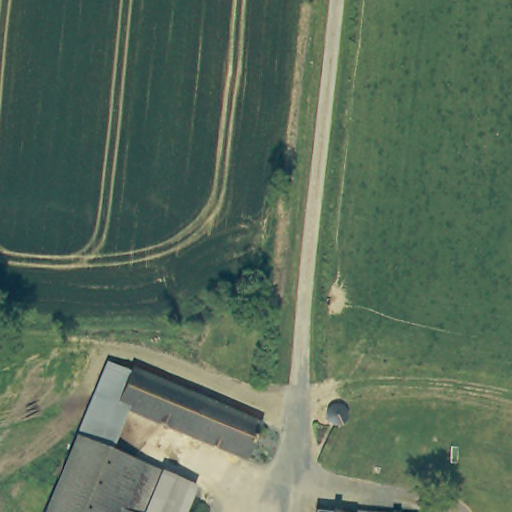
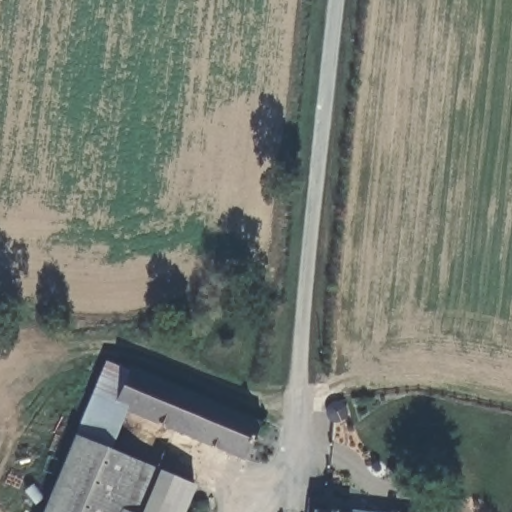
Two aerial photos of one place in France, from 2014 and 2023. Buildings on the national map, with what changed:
unchanged [(99,380),(107,360),(126,367),(130,364),(262,420),(248,458),(127,406),(111,447),(87,438),(77,434),(94,392),(99,380)]
unchanged [(322,409),(334,405),(340,409),(341,418),(336,424),(325,424),(322,409)]
unchanged [(77,434),(87,438),(111,447),(164,469),(146,512),(44,512),(77,434)]
unchanged [(195,481),(182,512),(146,512),(164,469),(195,481)]
unchanged [(349,510),(350,505),(402,512),(314,512),(315,505),(349,510)]

